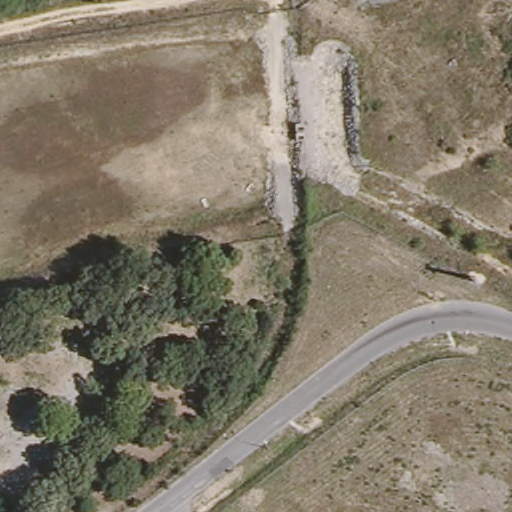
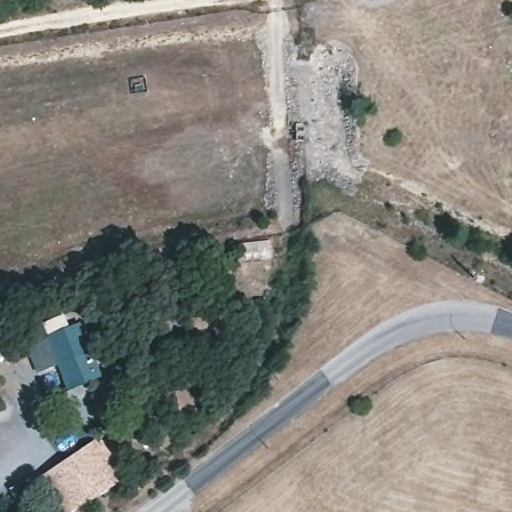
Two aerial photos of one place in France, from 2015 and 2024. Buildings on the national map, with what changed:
new [(53,366),(38,373),(22,335),(63,315),(69,327),(80,322),(102,373),(67,391),(53,366)]
new [(99,437),(127,477),(74,512),(63,512),(40,477),(99,437)]

